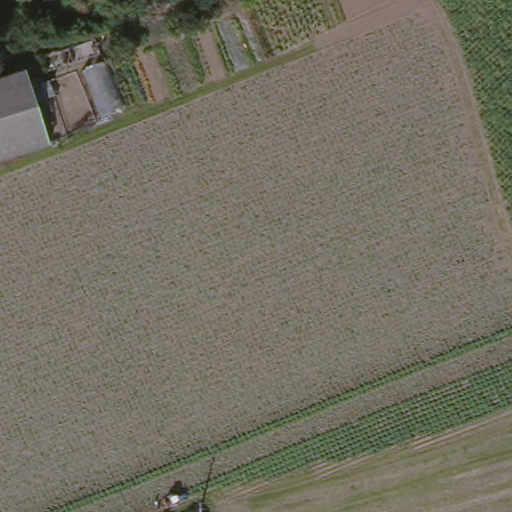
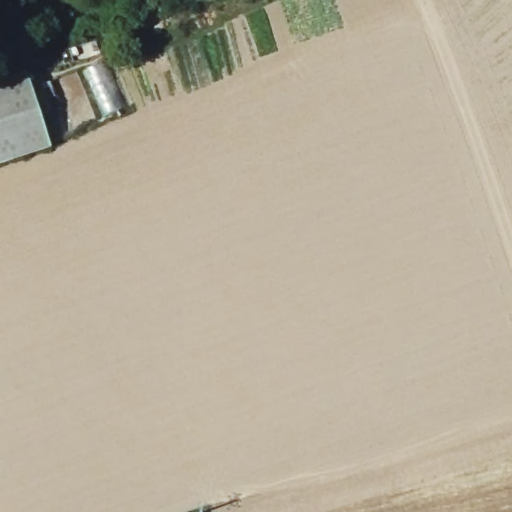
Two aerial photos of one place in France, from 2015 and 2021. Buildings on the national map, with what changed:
unchanged [(44,146),(0,162),(0,80),(17,74),(44,146)]

